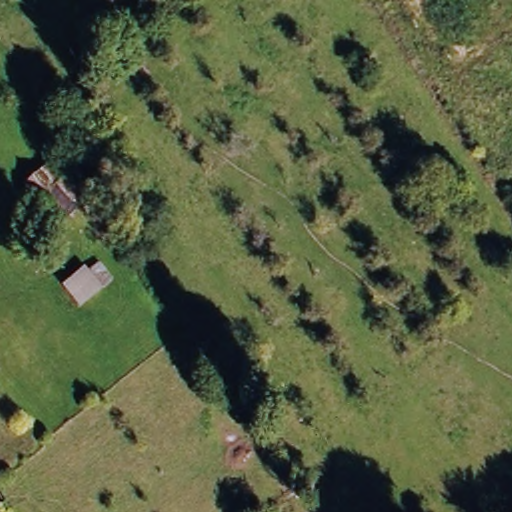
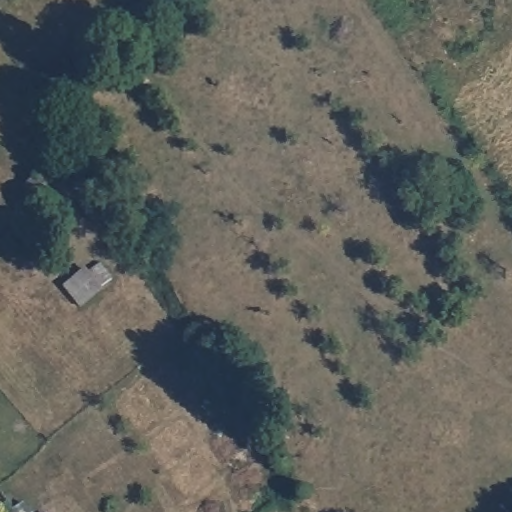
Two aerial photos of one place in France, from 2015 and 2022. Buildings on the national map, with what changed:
unchanged [(51,156),(102,212),(94,220),(75,199),(67,207),(50,188),(36,199),(22,184),(51,156)]
unchanged [(80,268),(99,289),(79,308),(60,287),(80,268)]

